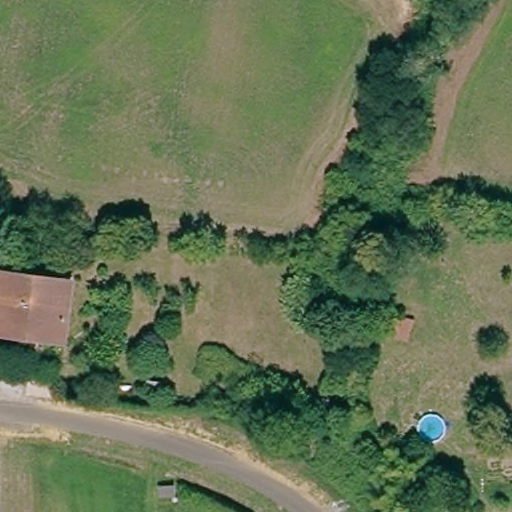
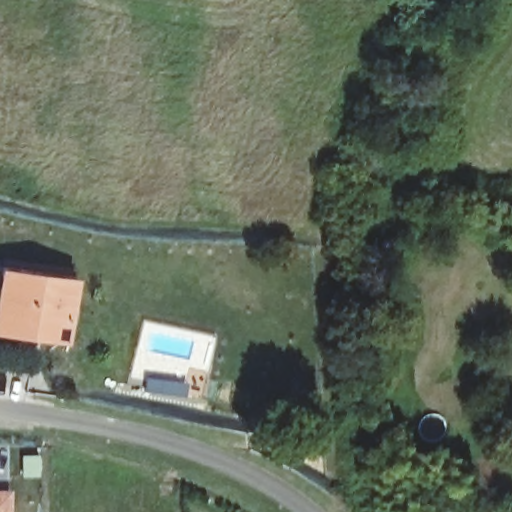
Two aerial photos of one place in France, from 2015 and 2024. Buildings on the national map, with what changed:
unchanged [(0,332),(0,300),(3,274),(73,283),(64,341),(0,332)]
new [(9,512),(0,512),(0,489),(9,489),(9,512)]

